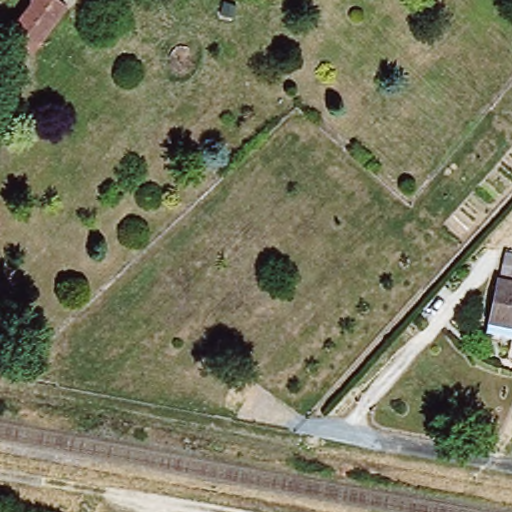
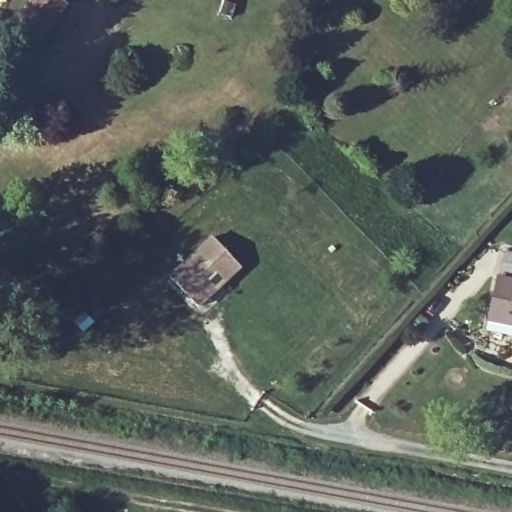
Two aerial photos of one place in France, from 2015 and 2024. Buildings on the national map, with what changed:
unchanged [(0,34),(25,0),(61,0),(68,5),(32,55),(0,34)]
new [(170,276),(212,235),(242,267),(199,307),(170,276)]
unchanged [(499,250),(512,252),(512,286),(492,283),(499,250)]
unchanged [(512,286),(512,330),(483,324),(492,283),(512,286)]

